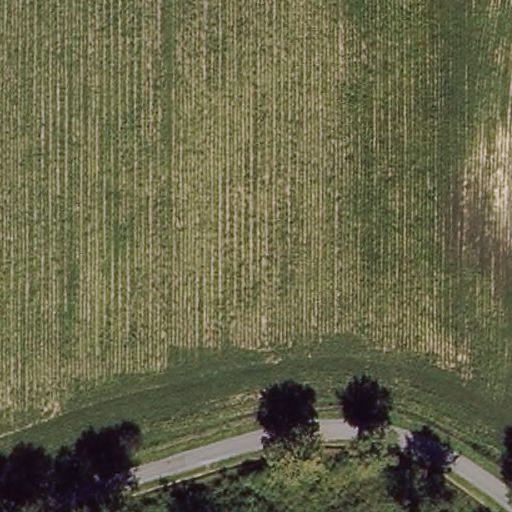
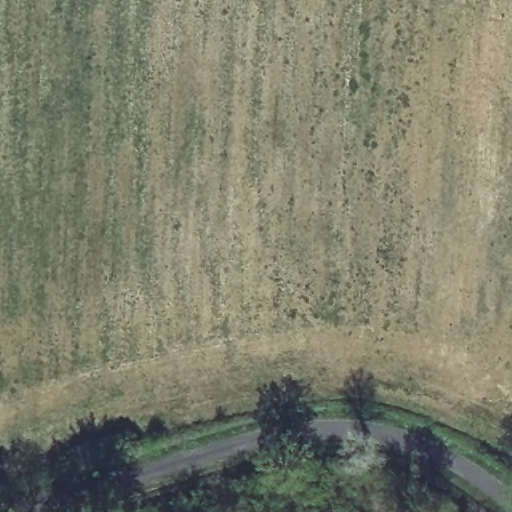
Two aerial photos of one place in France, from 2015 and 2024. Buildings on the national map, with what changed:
[]

